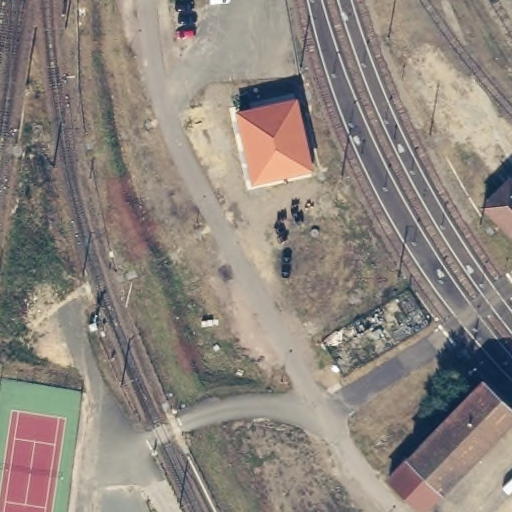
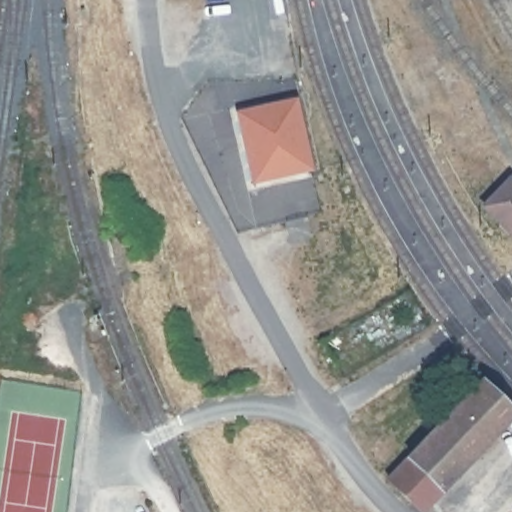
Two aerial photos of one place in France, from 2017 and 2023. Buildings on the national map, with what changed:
unchanged [(314,170),(251,184),(235,112),(297,99),(314,170)]
unchanged [(481,205),(508,177),(512,180),(512,234),(481,205)]
unchanged [(420,505),(387,475),(484,376),(512,403),(512,412),(420,505)]

